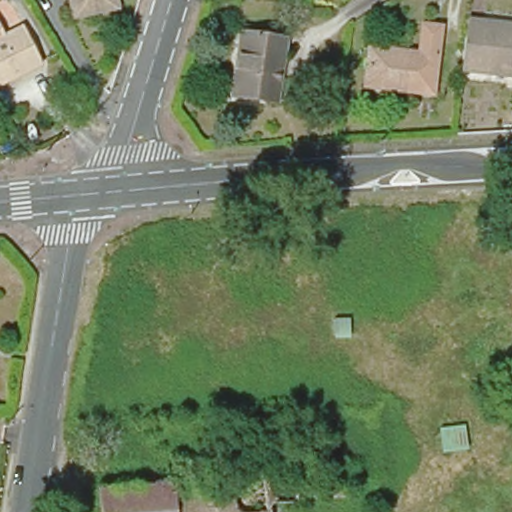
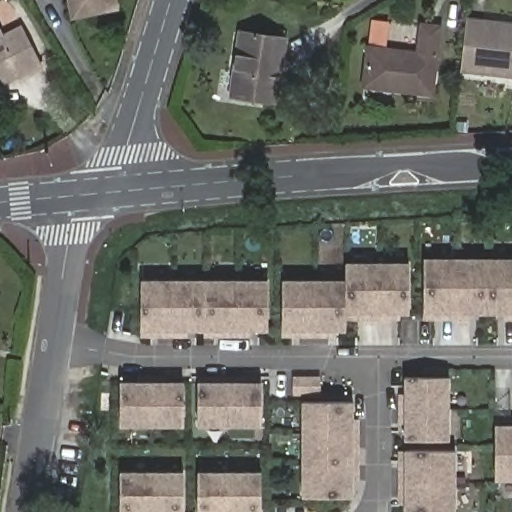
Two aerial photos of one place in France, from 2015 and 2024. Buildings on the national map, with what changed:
unchanged [(77,17),(73,0),(120,0),(122,8),(77,17)]
unchanged [(512,70),(466,65),(472,17),(512,22),(512,70)]
unchanged [(371,49),(419,52),(422,25),(440,26),(434,92),(394,90),(394,87),(368,85),(371,49)]
unchanged [(5,43),(27,31),(45,65),(0,89),(0,35),(5,43)]
unchanged [(241,35),(285,41),(275,104),(231,97),(241,35)]
new [(506,313),(470,313),(469,320),(423,320),(424,313),(423,257),(512,257),(512,320),(506,321),(506,313)]
new [(345,280),(345,262),(410,262),(409,313),(398,313),(399,320),(346,318),(346,314),(345,280)]
new [(140,280),(205,279),(204,331),(188,331),(187,337),(141,337),(142,331),(140,331),(140,280)]
new [(203,337),(204,331),(205,279),(268,279),(269,331),(251,331),(250,337),(203,337)]
new [(345,280),(346,314),(346,318),(345,330),(282,331),(282,279),(345,280)]
new [(404,440),(404,377),(450,377),(449,440),(404,440)]
new [(183,427),(121,427),(120,381),(184,381),(183,427)]
new [(261,381),(261,427),(196,427),(197,381),(261,381)]
new [(303,401),(354,402),(354,497),(302,496),(303,401)]
new [(495,424),(512,424),(512,482),(494,482),(495,424)]
demolished [(272,445),(279,452),(272,461),(265,452),(272,445)]
new [(456,512),(405,512),(405,450),(456,450),(456,512)]
new [(183,471),(183,512),(120,512),(119,471),(183,471)]
new [(261,471),(260,512),(196,512),(196,472),(261,471)]
demolished [(343,492),(296,496),(295,474),(341,471),(343,492)]
demolished [(296,505),(266,507),(266,512),(100,512),(99,490),(294,474),(296,496),(296,505)]

